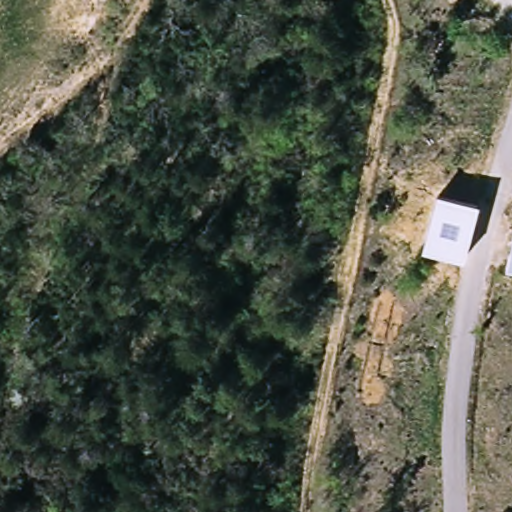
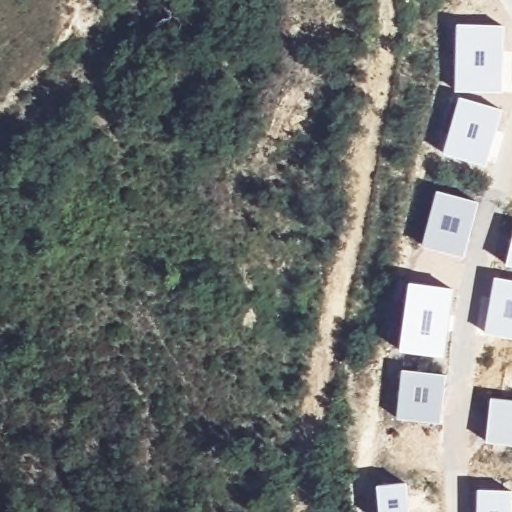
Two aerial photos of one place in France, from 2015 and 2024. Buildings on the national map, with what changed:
new [(456,92),(456,25),(506,26),(503,92),(456,92)]
new [(444,155),(460,98),(504,109),(485,165),(444,155)]
unchanged [(478,202),(463,258),(421,247),(437,192),(478,202)]
unchanged [(512,264),(510,263),(512,253),(512,264)]
new [(512,340),(485,335),(494,277),(512,281),(512,340)]
new [(454,288),(444,358),(400,351),(409,282),(454,288)]
new [(440,424),(397,418),(403,368),(446,373),(440,424)]
new [(491,399),(512,401),(512,447),(487,444),(491,399)]
new [(411,512),(381,512),(378,485),(407,482),(411,512)]
new [(512,512),(477,512),(478,490),(512,491),(512,512)]

